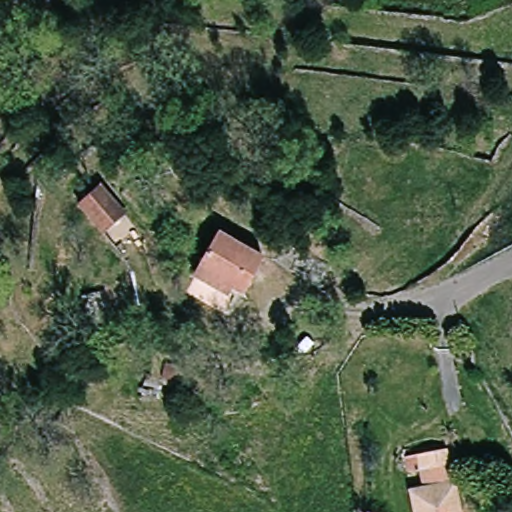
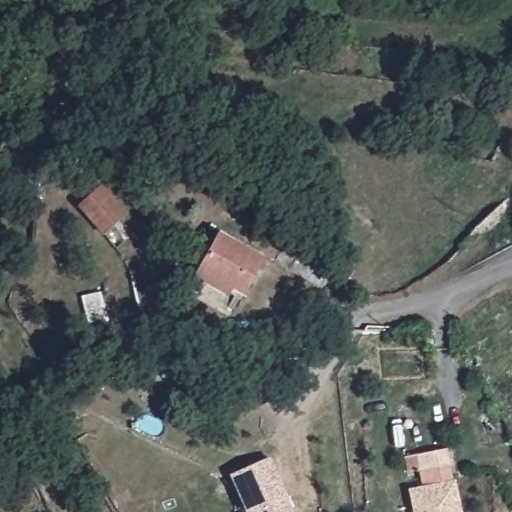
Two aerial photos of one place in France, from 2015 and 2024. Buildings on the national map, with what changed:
unchanged [(106,188),(128,218),(103,237),(81,206),(106,188)]
unchanged [(194,279),(201,267),(224,232),(268,260),(245,296),(232,287),(225,299),(194,279)]
unchanged [(426,487),(423,465),(410,468),(408,450),(453,444),(463,512),(419,512),(415,488),(426,487)]
new [(270,457),(294,512),(246,512),(229,476),(270,457)]

